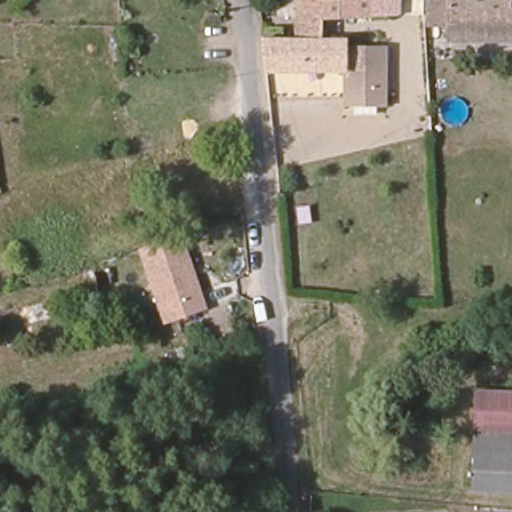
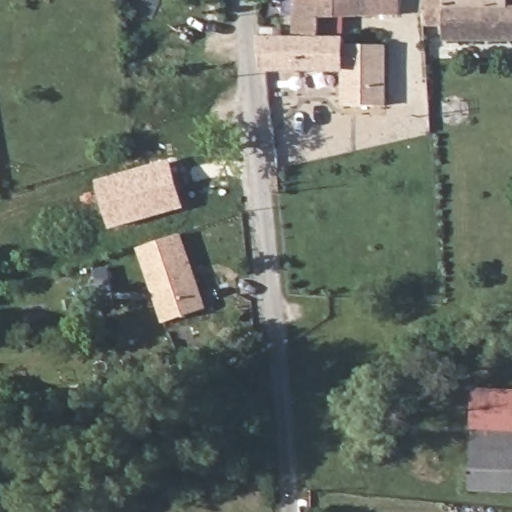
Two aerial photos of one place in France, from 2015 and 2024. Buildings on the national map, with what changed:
unchanged [(341,15),(317,15),(317,39),(296,39),(296,0),(366,0),(365,14),(341,15)]
unchanged [(366,0),(395,0),(394,13),(365,14),(366,0)]
demolished [(395,0),(422,0),(422,12),(394,13),(395,0)]
unchanged [(445,22),(422,22),(422,12),(422,0),(510,0),(509,7),(512,7),(512,40),(446,40),(445,22)]
unchanged [(510,0),(512,0),(512,7),(509,7),(510,0)]
unchanged [(259,38),(296,39),(297,70),(263,71),(259,38)]
unchanged [(296,39),(317,39),(336,39),(336,69),(297,70),(296,39)]
unchanged [(346,39),(346,45),(387,46),(386,105),(341,106),(344,70),(336,69),(336,39),(346,39)]
new [(109,229),(96,180),(171,161),(185,209),(109,229)]
unchanged [(165,324),(136,250),(178,233),(204,309),(165,324)]
unchanged [(476,427),(479,386),(512,388),(512,445),(475,443),(476,427)]
unchanged [(475,443),(512,445),(512,483),(473,480),(475,443)]

